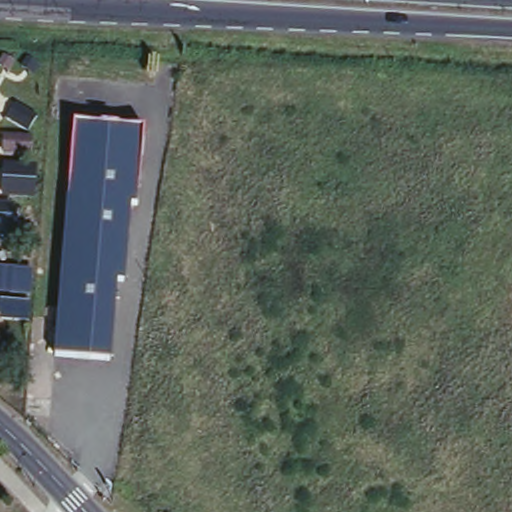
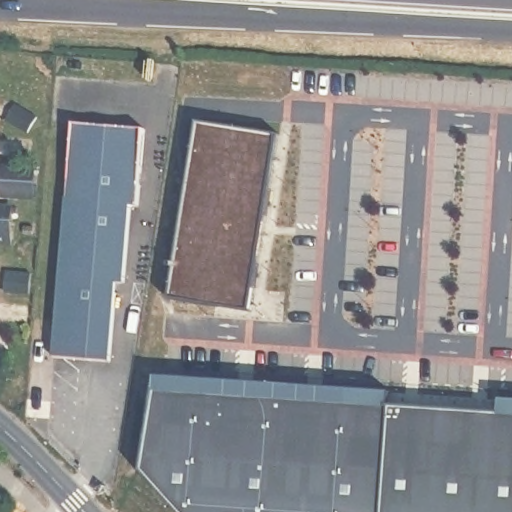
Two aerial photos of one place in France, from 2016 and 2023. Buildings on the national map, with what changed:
unchanged [(78,123),(147,131),(139,206),(131,205),(123,282),(115,281),(107,361),(52,355),(78,123)]
new [(199,125),(281,138),(253,317),(171,305),(199,125)]
demolished [(2,133),(34,133),(33,156),(0,153),(0,149),(2,133)]
demolished [(6,163),(37,164),(34,195),(4,191),(6,163)]
unchanged [(13,209),(10,239),(0,239),(0,208),(13,209)]
demolished [(6,267),(31,269),(29,287),(4,285),(6,267)]
demolished [(38,295),(34,316),(0,312),(0,293),(38,295)]
unchanged [(9,348),(0,352),(0,334),(9,348)]
new [(159,383),(393,397),(393,410),(159,395),(159,383)]
new [(159,395),(393,410),(512,418),(512,512),(176,512),(172,508),(145,478),(157,395),(159,395)]

